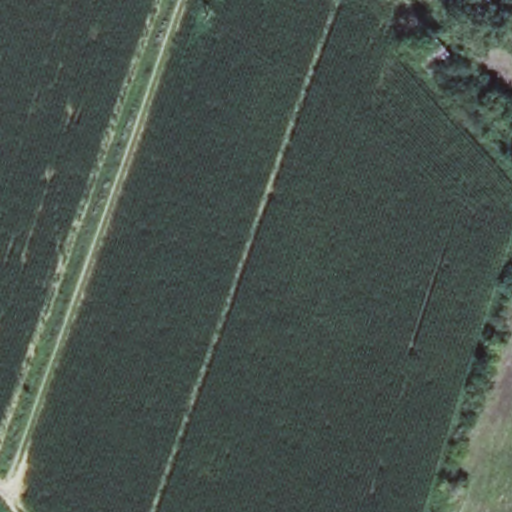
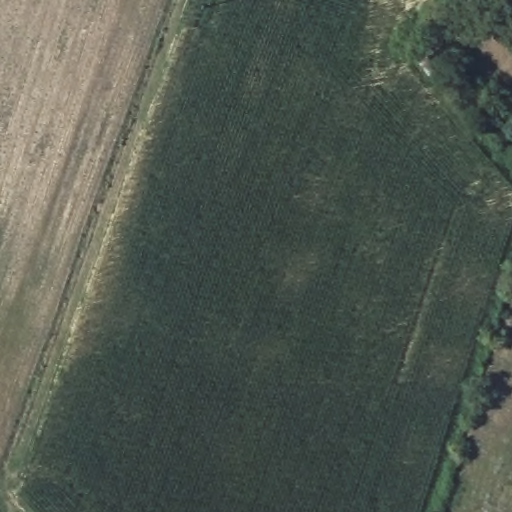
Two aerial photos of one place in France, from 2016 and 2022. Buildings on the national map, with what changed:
unchanged [(433,78),(412,51),(435,32),(446,45),(457,60),(433,78)]

